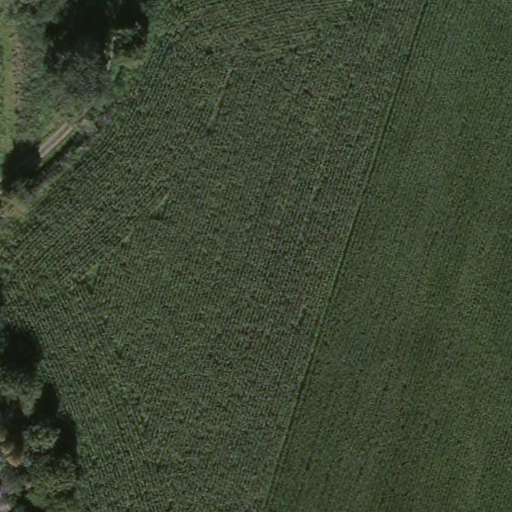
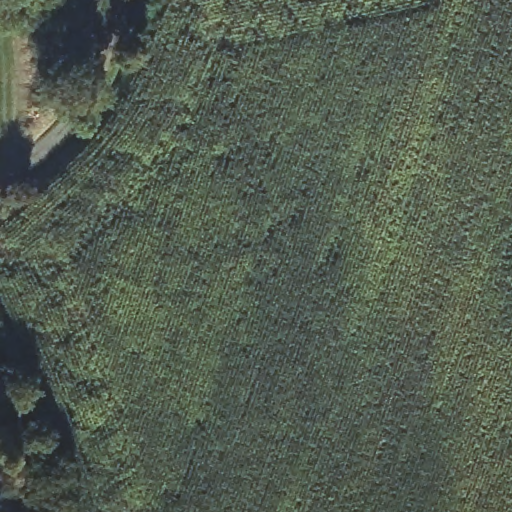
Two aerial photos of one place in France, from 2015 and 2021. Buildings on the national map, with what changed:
unchanged [(0,488),(0,445),(13,479),(0,488)]

